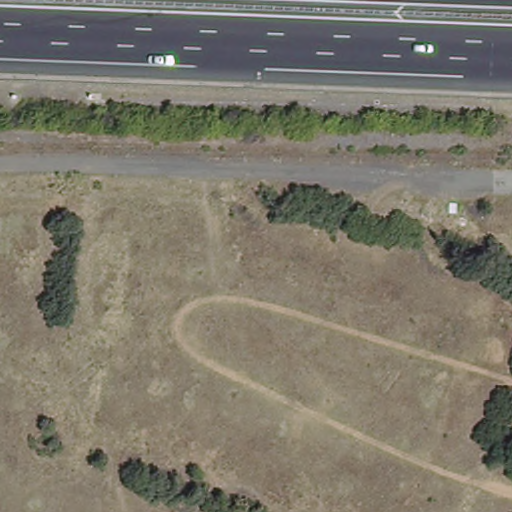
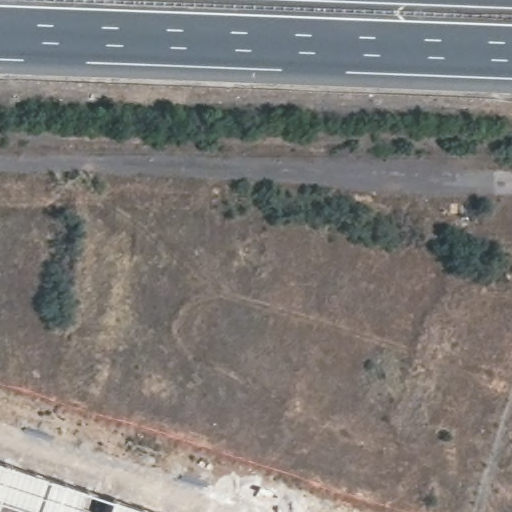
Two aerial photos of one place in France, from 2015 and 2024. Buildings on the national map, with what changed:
new [(0,462),(156,512),(0,512),(0,462)]

